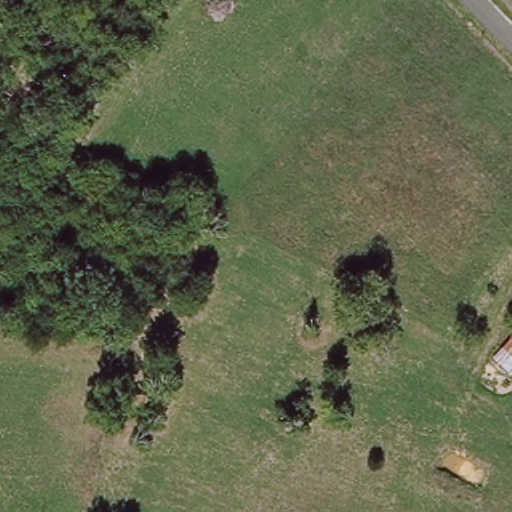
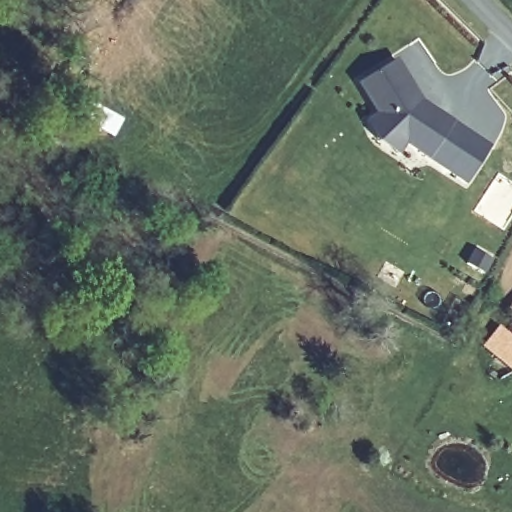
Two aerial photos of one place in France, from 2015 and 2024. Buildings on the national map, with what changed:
new [(444,170),(426,158),(402,142),(393,155),(375,142),(363,122),(375,115),(356,83),(393,60),(418,101),(450,122),(468,134),(488,146),(464,182),(444,170)]
unchanged [(512,310),(512,313),(510,311),(512,310)]
unchanged [(512,373),(495,359),(512,338),(512,373)]

